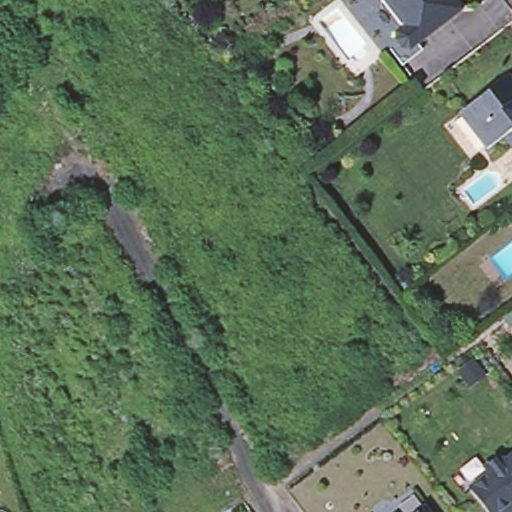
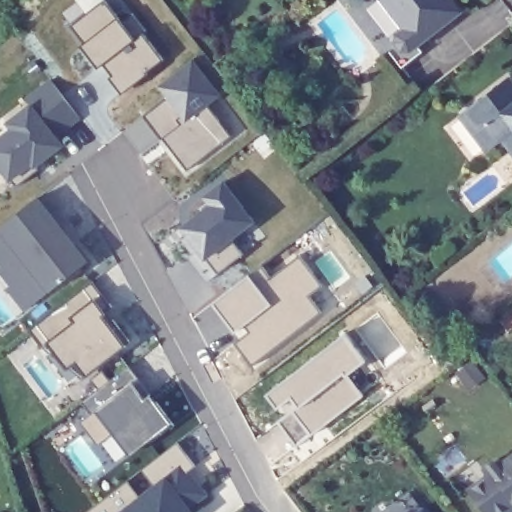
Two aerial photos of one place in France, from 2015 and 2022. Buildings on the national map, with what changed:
unchanged [(408,43),(400,34),(401,26),(409,21),(393,0),(465,0),(468,4),(417,44),(408,43)]
new [(109,78),(114,74),(105,63),(99,66),(83,46),(86,43),(73,25),(105,1),(118,18),(121,23),(131,16),(144,34),(163,59),(146,71),(148,74),(122,94),(109,78)]
new [(169,98),(159,86),(193,60),(221,96),(208,106),(232,137),(188,171),(170,147),(172,146),(166,138),(161,141),(161,140),(143,117),(169,98)]
unchanged [(466,116),(474,110),(512,80),(512,142),(509,139),(502,145),(493,151),(466,116)]
new [(0,136),(10,129),(5,122),(34,103),(43,116),(65,99),(80,119),(58,136),(64,146),(36,166),(38,170),(14,187),(11,179),(0,165),(0,136)]
new [(208,260),(204,263),(176,225),(206,204),(202,198),(204,191),(225,177),(259,221),(235,242),(243,254),(218,272),(208,260)]
new [(87,262),(36,302),(19,281),(15,285),(1,268),(6,264),(0,256),(0,229),(38,199),(87,262)]
new [(261,266),(271,279),(299,257),(321,287),(307,297),(321,314),(252,368),(235,345),(249,334),(244,326),(233,334),(211,304),(261,266)]
new [(93,281),(113,307),(104,314),(110,322),(113,320),(131,342),(88,375),(63,344),(43,348),(29,330),(93,281)]
new [(278,422),(294,410),(300,407),(293,396),(276,407),(267,394),(346,335),(364,359),(346,374),(361,394),(311,431),(296,446),(278,422)]
new [(82,402),(129,366),(130,367),(128,369),(154,404),(157,403),(174,426),(151,444),(148,441),(131,454),(115,433),(108,438),(98,445),(80,422),(91,415),(82,402)]
unchanged [(495,512),(490,512),(464,480),(483,466),(479,460),(491,450),(498,451),(499,453),(512,443),(512,499),(495,512)]
new [(177,445),(195,467),(184,474),(191,481),(194,478),(208,497),(191,511),(192,512),(88,512),(177,445)]
unchanged [(424,509),(426,512),(419,512),(424,509)]

